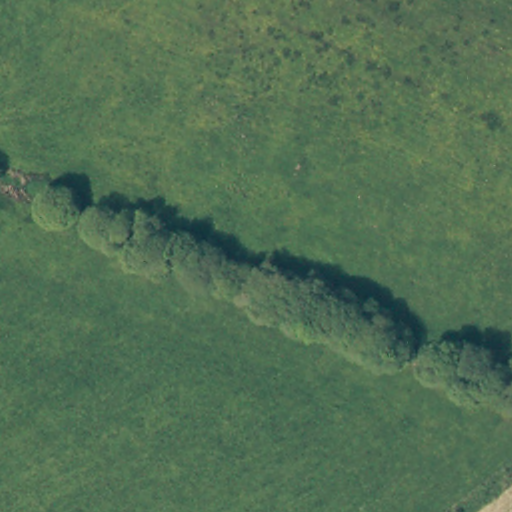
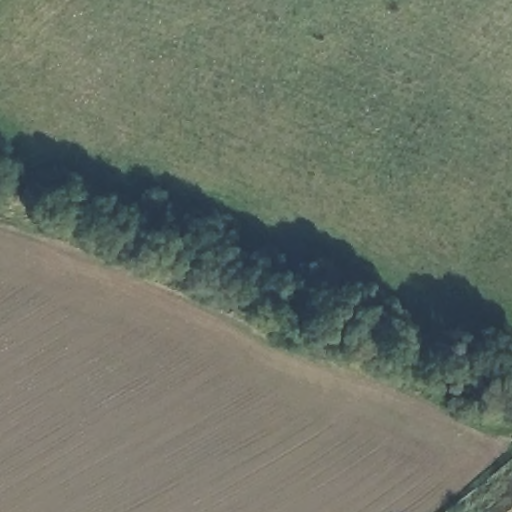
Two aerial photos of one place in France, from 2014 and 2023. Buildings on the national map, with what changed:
[]

